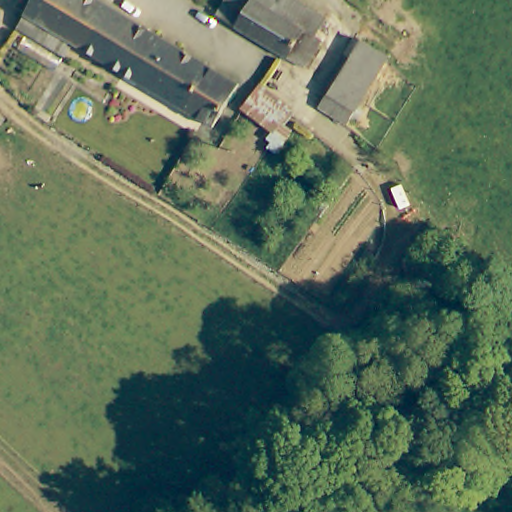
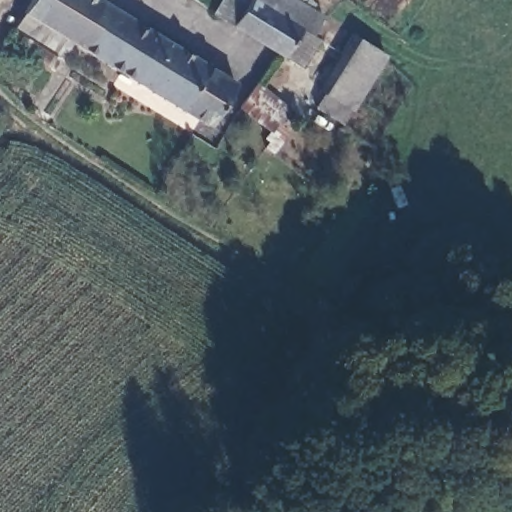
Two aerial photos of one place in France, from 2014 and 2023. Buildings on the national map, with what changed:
unchanged [(25,18),(35,0),(98,0),(231,69),(208,112),(76,44),(70,58),(35,40),(43,27),(25,18)]
unchanged [(295,19),(290,27),(300,32),(293,45),(284,40),(279,50),(210,9),(215,0),(263,0),(292,17),(295,19)]
unchanged [(306,26),(311,29),(295,60),(279,50),(284,40),(293,45),(300,32),(290,27),(295,19),(292,17),(263,0),(307,0),(315,5),(306,26)]
unchanged [(358,35),(382,49),(352,102),(343,119),(317,105),(330,85),(358,35)]
unchanged [(292,109),(277,130),(245,108),(260,87),(292,109)]

